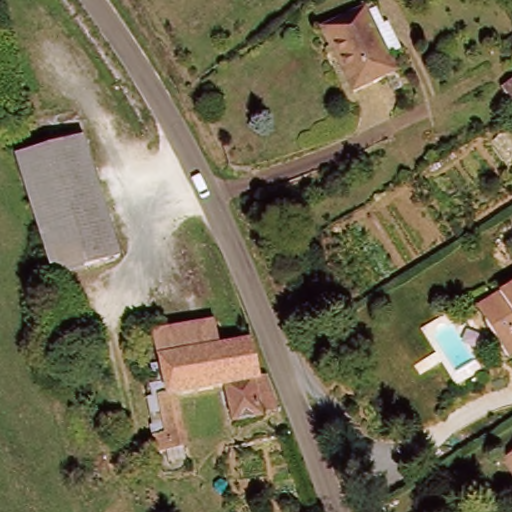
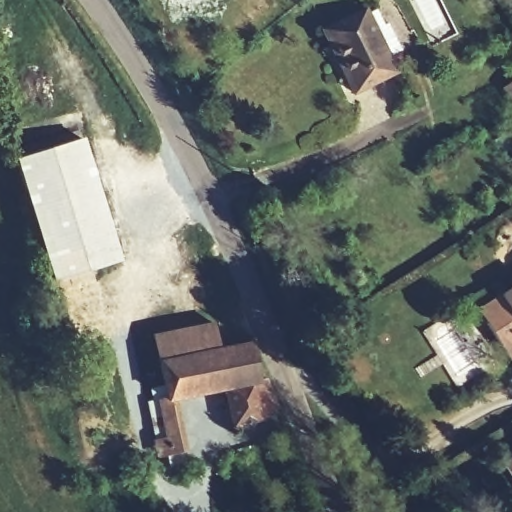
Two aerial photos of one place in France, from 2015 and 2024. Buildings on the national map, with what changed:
unchanged [(360,8),(393,76),(355,93),(323,25),(360,8)]
unchanged [(512,85),(512,98),(505,89),(512,85)]
unchanged [(53,280),(16,161),(80,141),(117,260),(53,280)]
unchanged [(474,308),(497,292),(512,282),(512,364),(479,316),(474,308)]
unchanged [(220,344),(247,336),(250,382),(262,381),(274,414),(262,418),(259,426),(229,431),(223,392),(169,406),(164,380),(152,332),(212,317),(220,344)]
unchanged [(150,432),(160,430),(155,409),(169,406),(184,465),(159,471),(150,432)]
unchanged [(512,455),(512,459),(510,456),(512,455)]

